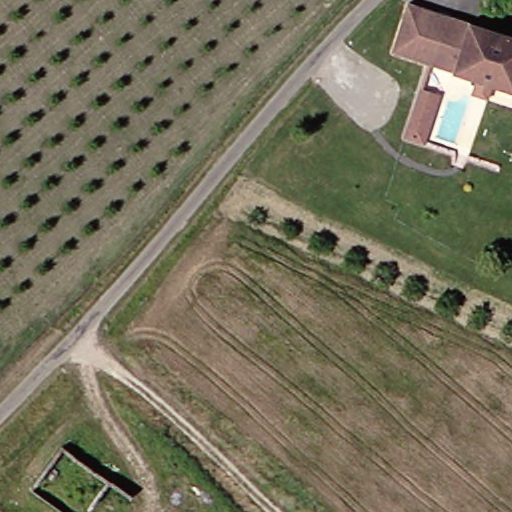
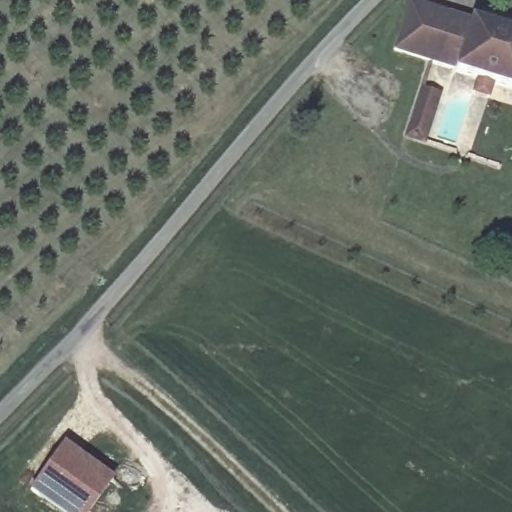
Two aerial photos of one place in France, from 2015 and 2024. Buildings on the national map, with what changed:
unchanged [(408,5),(512,38),(512,91),(393,54),(408,5)]
unchanged [(412,105),(372,81),(382,64),(420,88),(443,95),(427,143),(406,134),(412,105)]
new [(34,496),(48,476),(44,474),(64,446),(112,481),(90,512),(57,512),(34,496)]

